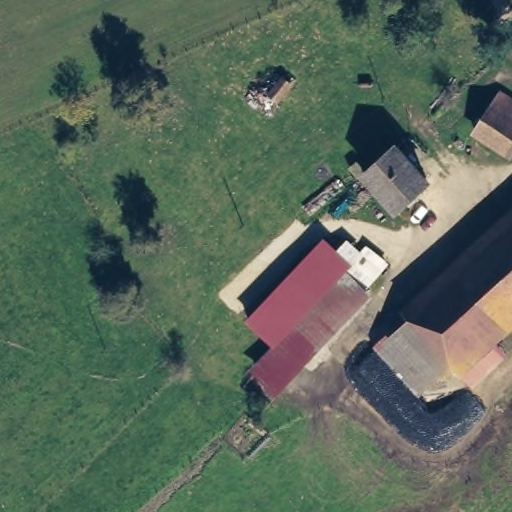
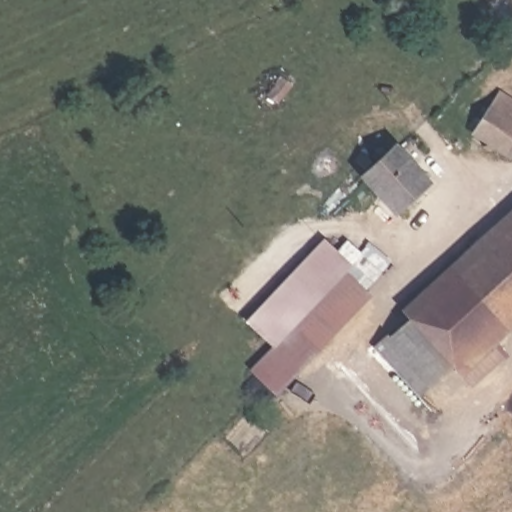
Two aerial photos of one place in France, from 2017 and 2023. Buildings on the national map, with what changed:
unchanged [(280,102),(271,95),(285,80),(292,87),(280,102)]
unchanged [(512,116),(512,132),(512,153),(507,162),(472,140),(487,117),(495,105),(512,116)]
unchanged [(417,153),(407,165),(423,184),(393,213),(361,179),(403,140),(417,153)]
unchanged [(412,401),(372,350),(512,214),(512,334),(465,380),(454,370),(412,401)]
unchanged [(252,372),(279,345),(255,325),(324,254),(375,297),(277,397),(252,372)]

